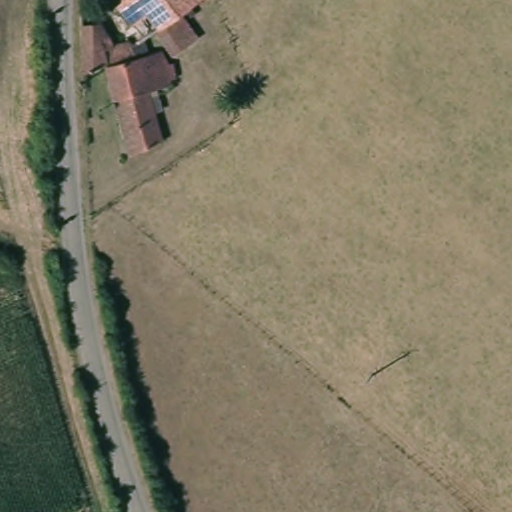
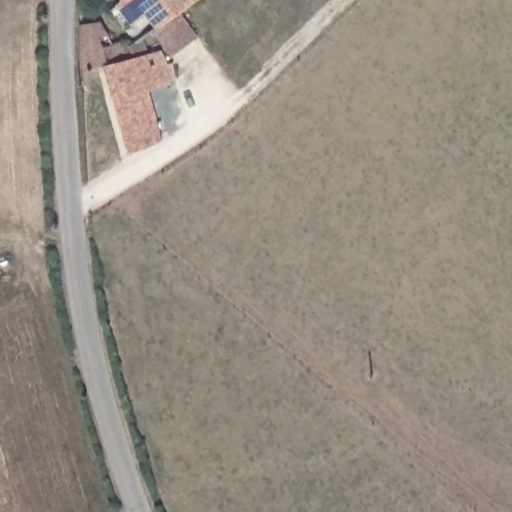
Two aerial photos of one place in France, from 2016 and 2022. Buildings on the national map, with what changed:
unchanged [(124,44),(120,40),(102,10),(114,0),(187,0),(177,7),(154,24),(136,37),(124,44)]
unchanged [(74,22),(89,21),(86,34),(100,25),(107,37),(120,40),(124,44),(130,52),(99,60),(89,65),(76,70),(74,22)]
unchanged [(130,52),(124,44),(136,37),(142,50),(155,47),(165,81),(141,87),(155,137),(122,150),(99,60),(130,52)]

